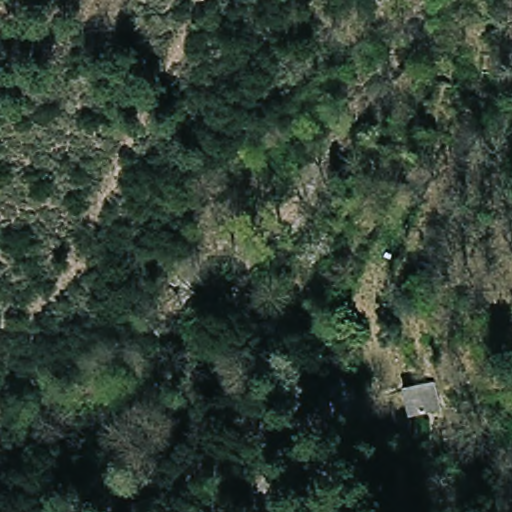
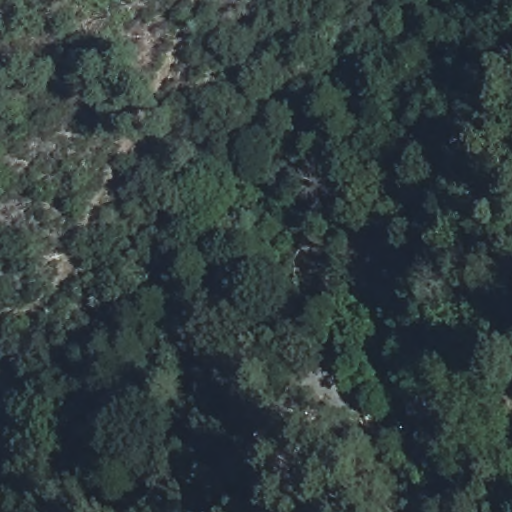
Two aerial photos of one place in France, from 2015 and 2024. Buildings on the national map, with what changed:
unchanged [(400,377),(432,371),(439,405),(406,412),(400,377)]

